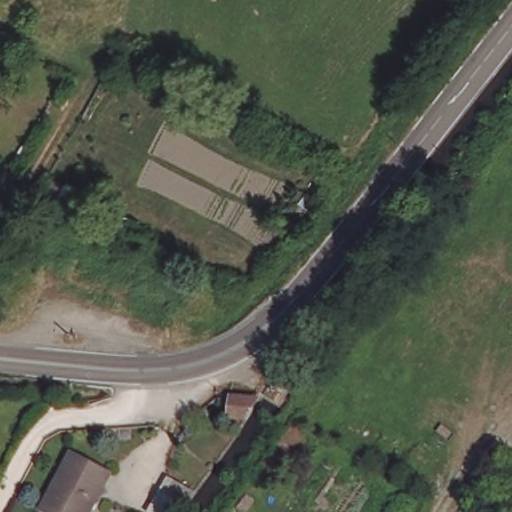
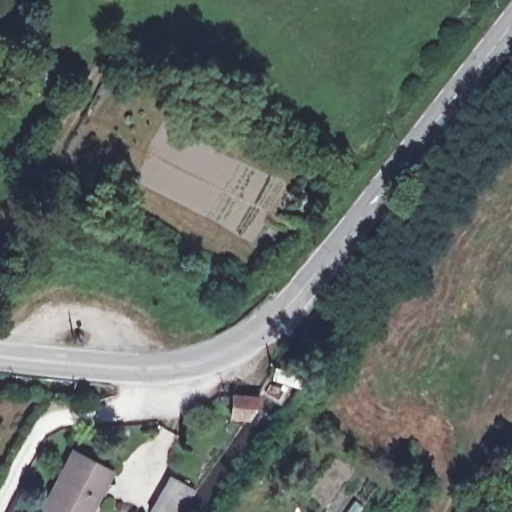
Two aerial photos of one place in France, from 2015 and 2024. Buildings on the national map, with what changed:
unchanged [(259,403),(243,420),(231,419),(238,400),(259,403)]
unchanged [(106,473),(87,512),(53,512),(41,507),(68,454),(106,473)]
unchanged [(188,493),(177,512),(156,512),(152,510),(169,481),(188,493)]

